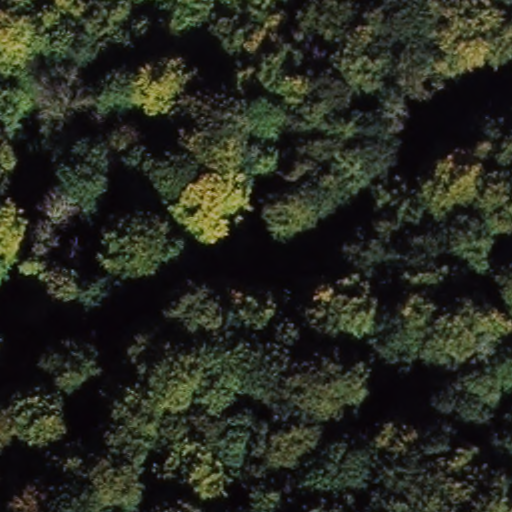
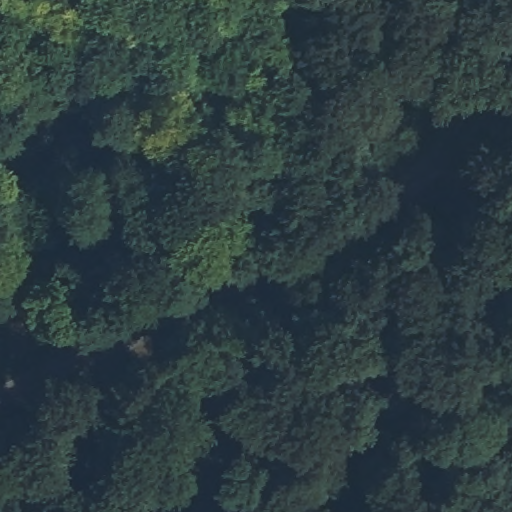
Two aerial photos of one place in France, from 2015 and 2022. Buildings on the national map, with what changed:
unchanged [(416,382),(398,393),(389,373),(407,365),(416,382)]

